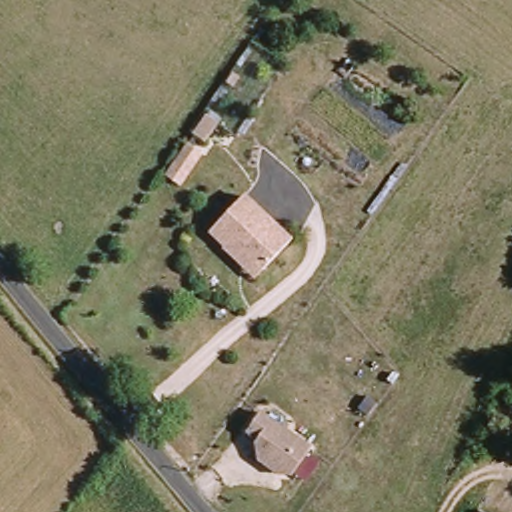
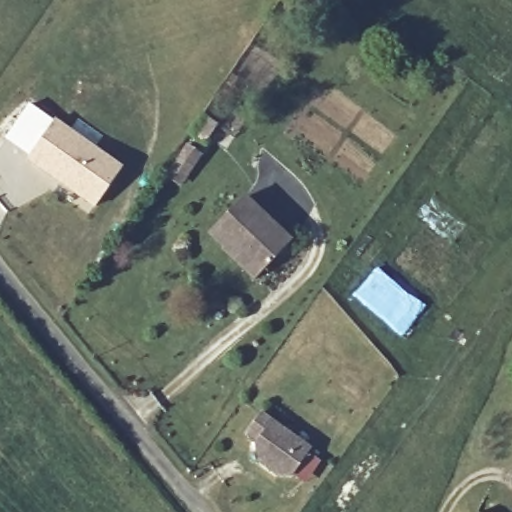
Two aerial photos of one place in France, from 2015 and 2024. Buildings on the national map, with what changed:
new [(54,121),(121,168),(94,207),(27,161),(54,121)]
unchanged [(202,156),(180,191),(163,178),(184,145),(202,156)]
unchanged [(221,245),(230,236),(224,241),(211,229),(241,194),(290,236),(262,267),(255,277),(221,245)]
new [(375,273),(416,311),(397,332),(356,294),(375,273)]
unchanged [(310,446),(287,483),(255,464),(255,443),(243,434),(258,410),(310,446)]

